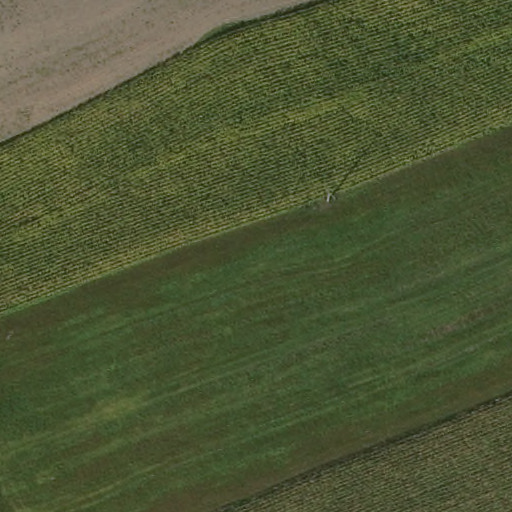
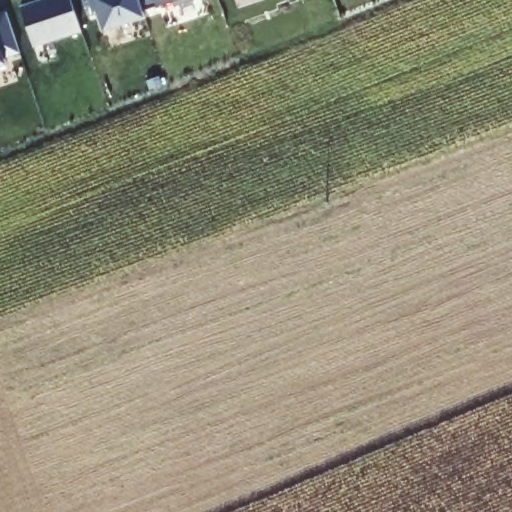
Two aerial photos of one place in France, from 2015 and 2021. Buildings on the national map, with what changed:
new [(37,0),(70,0),(81,30),(33,46),(20,6),(37,0)]
new [(142,12),(144,18),(104,32),(97,13),(95,14),(90,0),(138,0),(142,12)]
new [(175,6),(173,1),(142,12),(138,0),(193,0),(175,6)]

